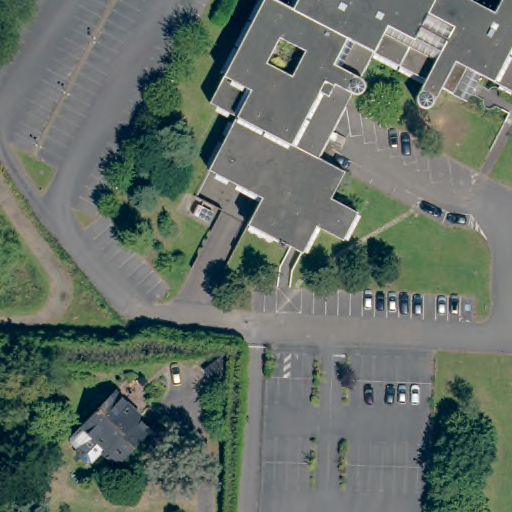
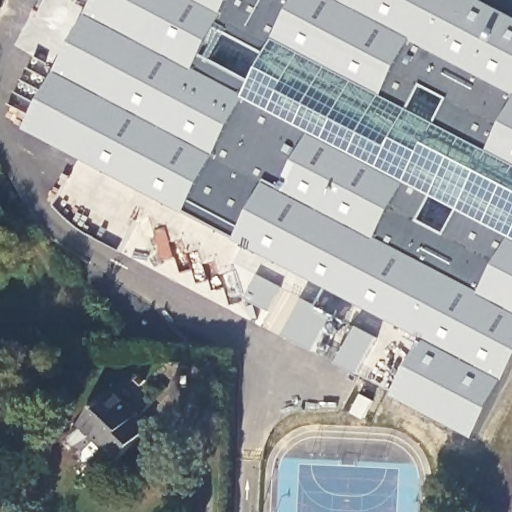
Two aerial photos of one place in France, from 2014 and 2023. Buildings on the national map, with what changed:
new [(262,326),(271,310),(240,295),(226,273),(239,247),(23,139),(6,103),(7,68),(41,0),(463,0),(512,26),(512,295),(451,422),(287,337),(262,326)]
demolished [(199,0),(219,0),(215,9),(199,0)]
demolished [(493,0),(512,0),(512,91),(476,71),(471,81),(462,99),(436,84),(427,100),(425,102),(422,104),(419,105),(416,105),(413,102),(411,98),(411,94),(413,90),(421,75),(369,47),(355,73),(358,75),(360,80),(360,83),(358,86),(355,89),(351,90),(347,90),(313,154),(339,168),(326,195),(353,209),(338,236),(311,221),(298,248),(244,220),(257,195),(204,167),(232,113),(205,100),(257,0),(471,0),(489,9),(493,0)]
unchanged [(91,456),(81,448),(81,442),(74,436),(75,429),(86,418),(120,385),(146,409),(141,413),(155,425),(121,458),(106,445),(96,456),(91,456)]

